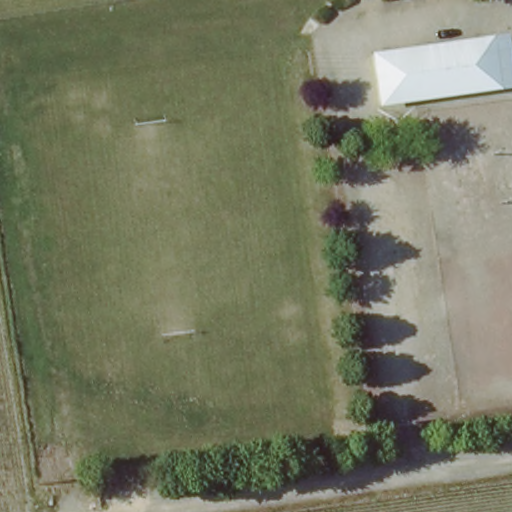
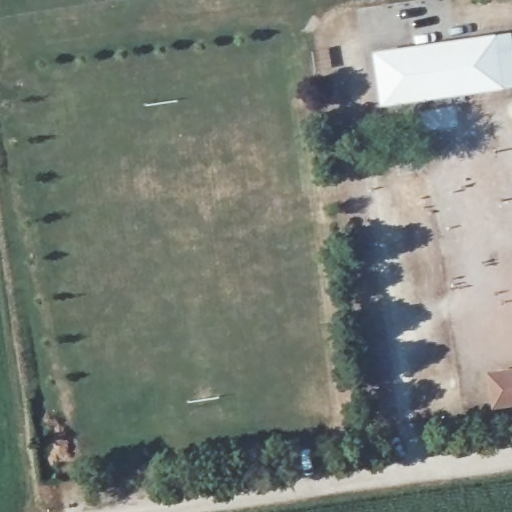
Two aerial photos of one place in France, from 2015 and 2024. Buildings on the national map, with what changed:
unchanged [(379,55),(493,37),(499,82),(385,98),(379,55)]
new [(512,401),(491,403),(487,372),(512,369),(512,401)]

